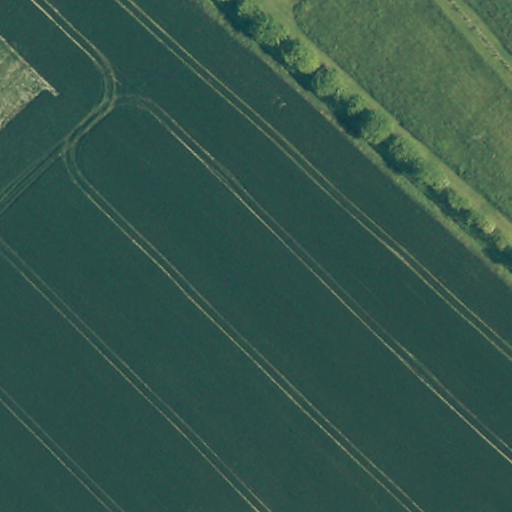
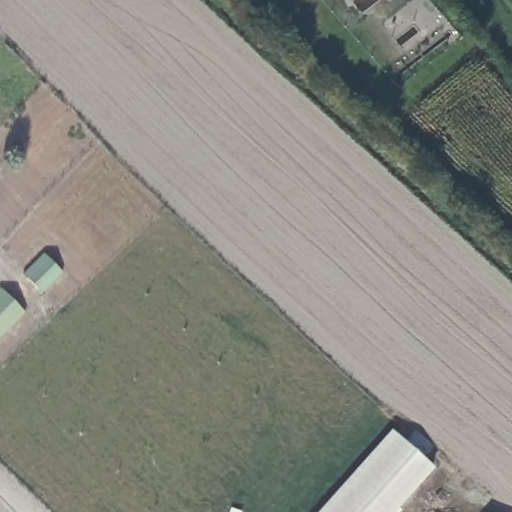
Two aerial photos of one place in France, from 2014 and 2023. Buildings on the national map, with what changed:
new [(0,337),(0,289),(25,312),(0,337)]
new [(434,467),(394,512),(317,512),(390,430),(434,467)]

